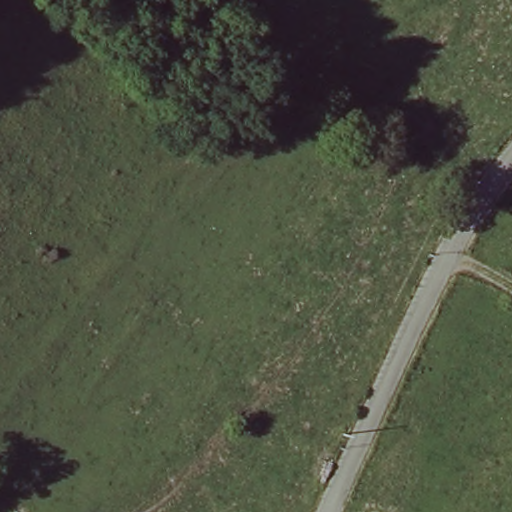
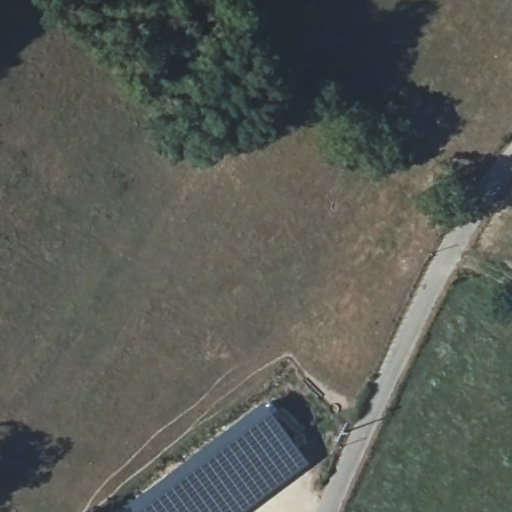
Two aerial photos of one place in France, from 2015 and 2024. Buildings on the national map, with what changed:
new [(182,461),(260,403),(308,465),(251,512),(115,512),(150,483),(182,461)]

